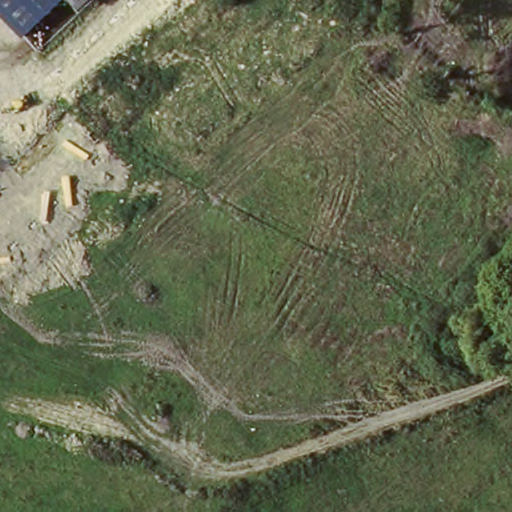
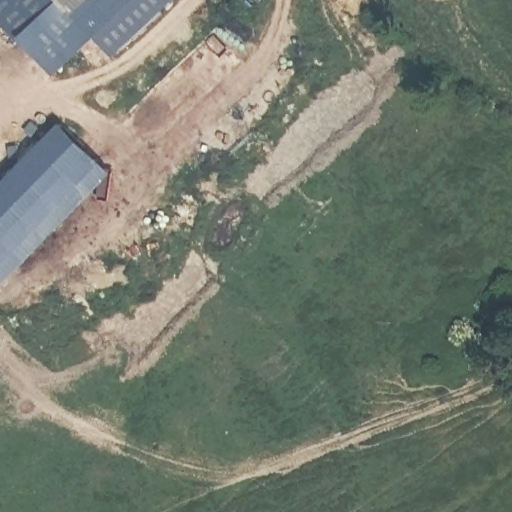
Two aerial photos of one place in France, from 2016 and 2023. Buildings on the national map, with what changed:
new [(103,47),(96,42),(59,79),(0,19),(0,0),(155,0),(103,47)]
unchanged [(155,0),(183,0),(114,62),(103,47),(155,0)]
new [(111,181),(3,294),(0,291),(0,193),(59,131),(111,181)]

